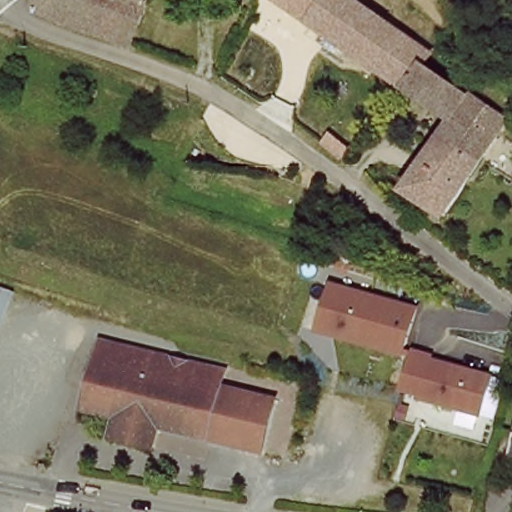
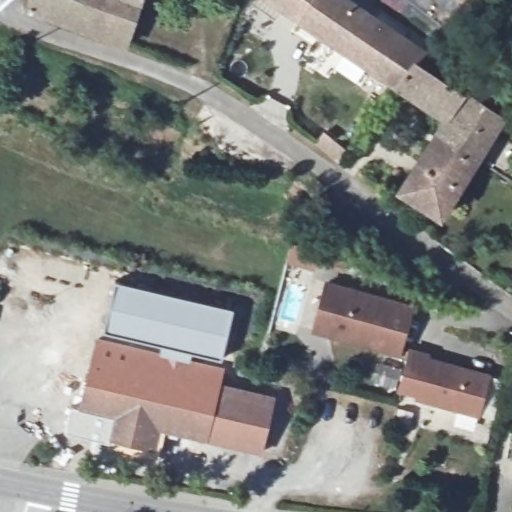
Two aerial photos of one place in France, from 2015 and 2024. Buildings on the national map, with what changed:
unchanged [(121,44),(90,32),(87,30),(31,11),(32,7),(34,0),(146,0),(131,47),(121,44)]
unchanged [(397,89),(281,11),(269,31),(247,17),(253,0),(346,0),(423,54),(397,89)]
unchanged [(452,17),(432,1),(433,0),(464,0),(452,17)]
unchanged [(424,55),(418,65),(464,101),(466,99),(502,121),(477,160),(440,221),(401,192),(445,121),(397,89),(423,54),(424,55)]
unchanged [(403,160),(377,189),(347,161),(373,132),(403,160)]
unchanged [(313,147),(323,134),(343,150),(335,162),(313,147)]
new [(234,311),(221,361),(193,353),(190,362),(160,355),(161,343),(108,332),(119,284),(234,311)]
unchanged [(317,315),(324,287),(410,308),(399,355),(328,337),(313,333),(317,315)]
unchanged [(223,370),(219,387),(207,441),(159,430),(154,450),(113,440),(117,420),(84,411),(100,341),(223,370)]
unchanged [(490,374),(481,413),(418,398),(419,395),(400,390),(410,352),(429,356),(428,360),(490,374)]
unchanged [(274,398),(262,453),(207,441),(219,387),(274,398)]
unchanged [(507,435),(512,435),(512,461),(502,459),(507,435)]

